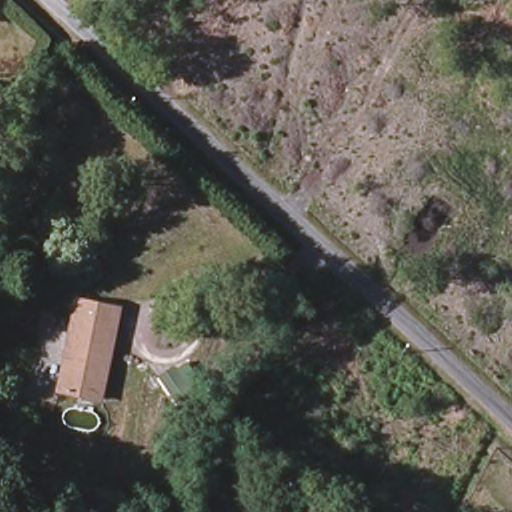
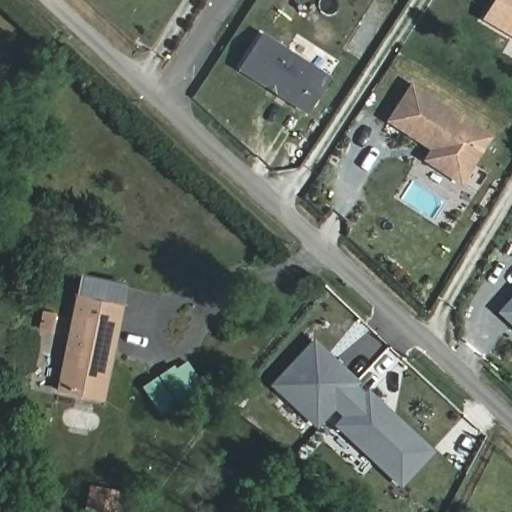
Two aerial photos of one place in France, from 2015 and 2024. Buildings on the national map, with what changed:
new [(485,18),(496,0),(512,0),(512,35),(485,18)]
new [(306,115),(237,69),(262,32),(331,76),(306,115)]
new [(461,186),(422,160),(429,150),(386,121),(411,82),(492,136),(461,186)]
new [(496,313),(512,295),(512,328),(496,313)]
unchanged [(117,305),(102,400),(62,396),(75,301),(117,305)]
new [(400,489),(332,425),(341,417),(333,409),(316,429),(271,385),(312,338),(358,380),(355,385),(364,393),(367,389),(434,451),(400,489)]

